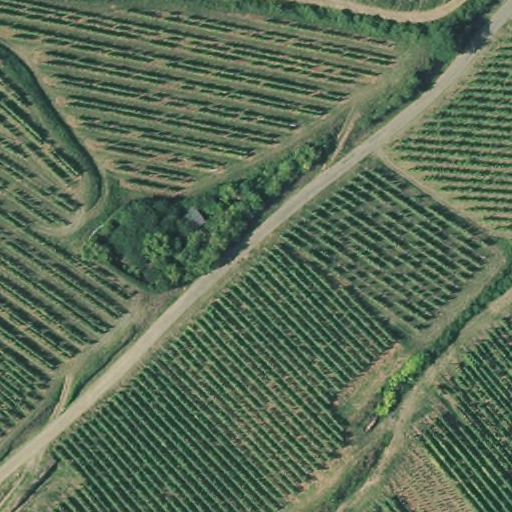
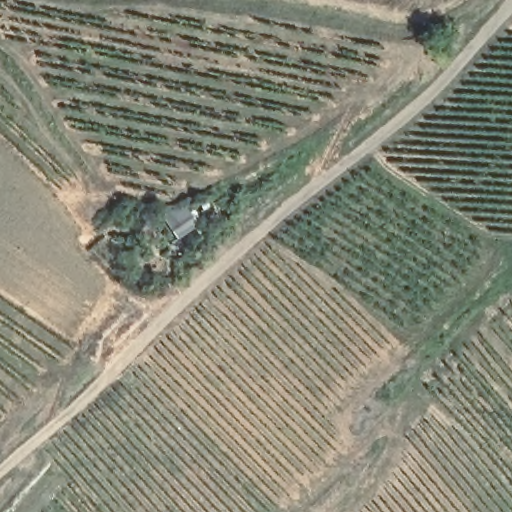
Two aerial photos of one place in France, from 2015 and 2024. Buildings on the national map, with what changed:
unchanged [(186,212),(193,223),(176,234),(168,224),(186,212)]

